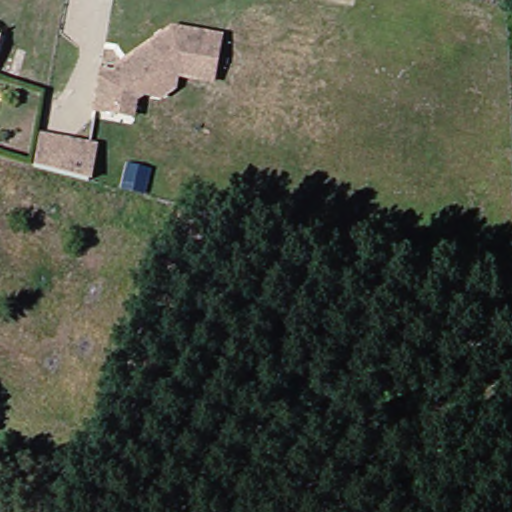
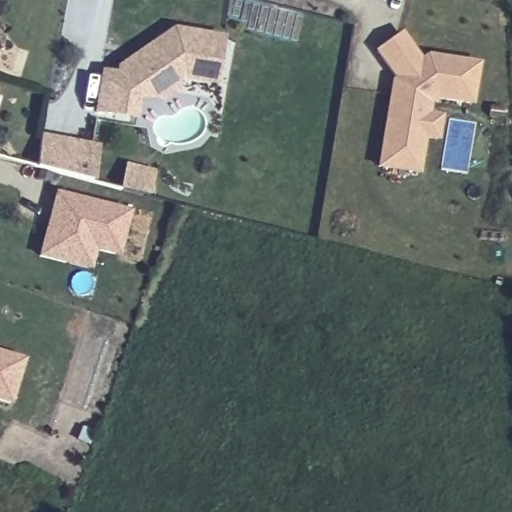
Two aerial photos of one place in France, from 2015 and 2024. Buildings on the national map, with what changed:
unchanged [(97,108),(103,69),(117,71),(118,64),(136,51),(172,25),(221,32),(215,71),(214,77),(177,71),(175,85),(163,94),(146,91),(137,98),(134,114),(117,111),(97,108)]
new [(434,140),(421,138),(415,174),(377,167),(391,75),(374,52),(398,35),(418,63),(425,57),(475,66),(468,105),(433,99),(427,104),(425,116),(438,118),(434,140)]
unchanged [(35,168),(41,137),(96,150),(88,181),(35,168)]
unchanged [(146,188),(125,183),(128,168),(150,173),(146,188)]
new [(62,264),(35,257),(42,228),(46,213),(51,195),(123,213),(112,256),(89,250),(84,269),(62,264)]
new [(18,361),(5,403),(0,402),(0,355),(18,361)]

